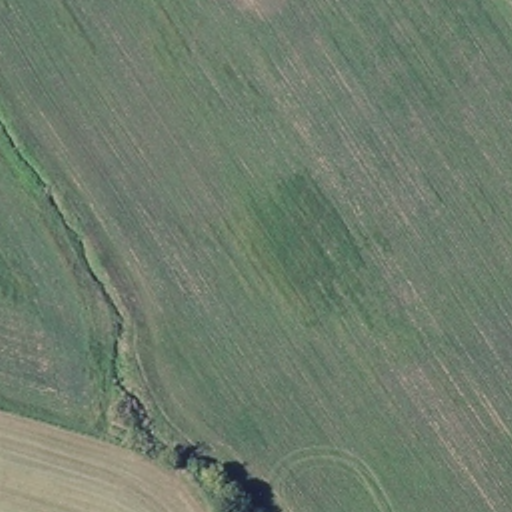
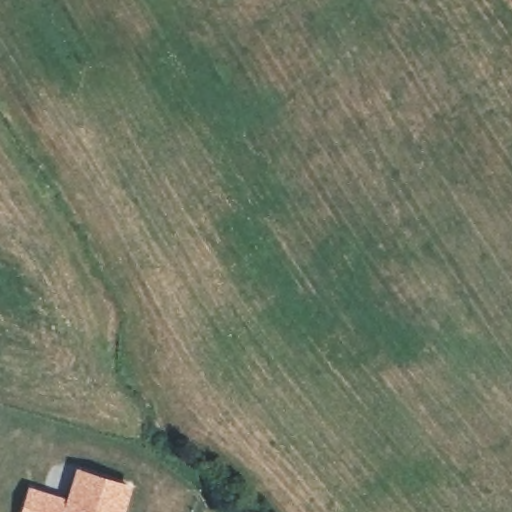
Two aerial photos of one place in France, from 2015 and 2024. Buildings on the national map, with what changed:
new [(66,495),(75,464),(133,482),(123,512),(19,512),(27,484),(66,495)]

